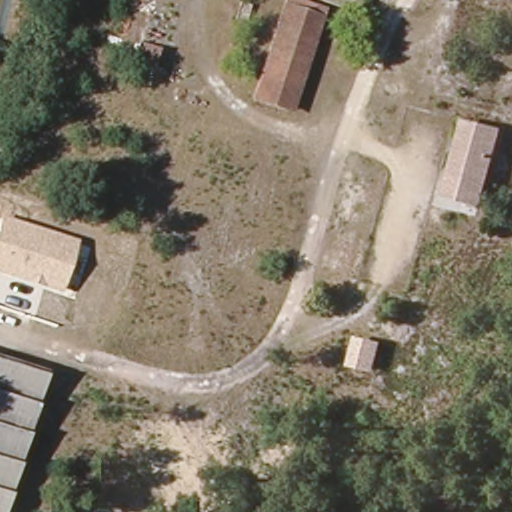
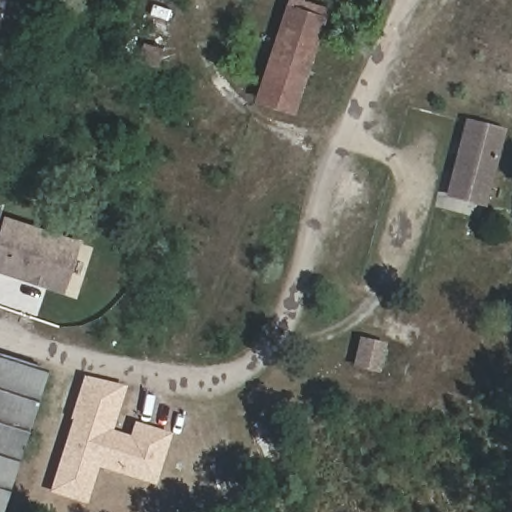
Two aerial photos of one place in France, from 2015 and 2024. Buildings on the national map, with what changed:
unchanged [(293,107),(259,96),(288,5),(323,16),(293,107)]
demolished [(162,80),(138,72),(155,15),(179,22),(162,80)]
unchanged [(491,210),(478,206),(481,196),(459,190),(473,136),(508,145),(491,210)]
unchanged [(0,273),(0,228),(4,216),(81,239),(63,292),(0,273)]
unchanged [(379,374),(352,367),(359,337),(386,343),(379,374)]
unchanged [(0,500),(0,364),(39,377),(0,500)]
new [(86,502),(52,491),(83,377),(125,387),(112,432),(129,436),(133,423),(171,433),(152,485),(97,467),(86,502)]

